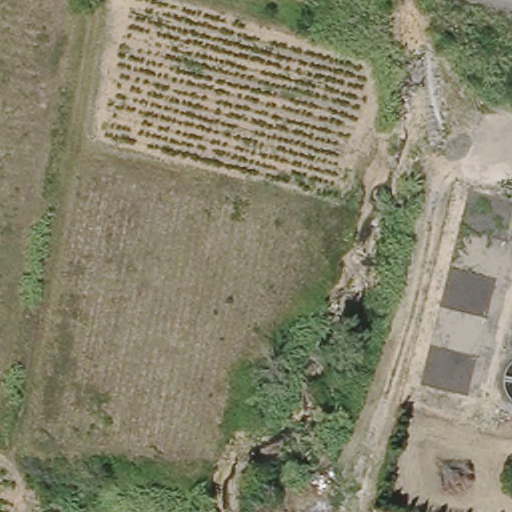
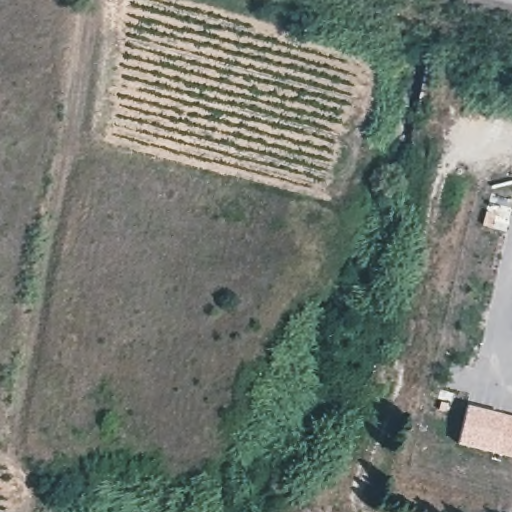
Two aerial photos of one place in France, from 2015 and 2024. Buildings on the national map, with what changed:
new [(505,415),(496,455),(457,445),(466,405),(505,415)]
new [(496,455),(505,415),(512,417),(512,458),(496,455)]

